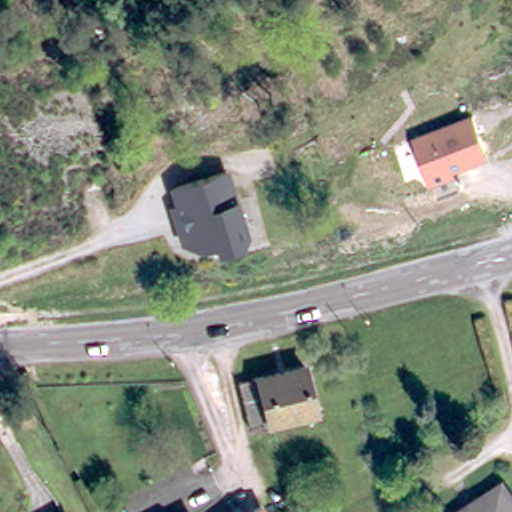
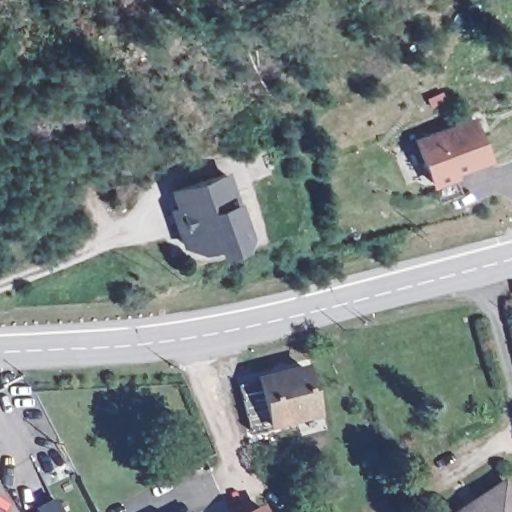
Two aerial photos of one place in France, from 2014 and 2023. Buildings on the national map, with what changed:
unchanged [(431,184),(413,136),(473,115),(489,158),(455,170),(457,175),(431,184)]
unchanged [(172,205),(167,188),(220,173),(237,233),(232,242),(210,248),(208,241),(190,246),(175,241),(170,225),(165,207),(172,205)]
unchanged [(255,430),(243,385),(310,369),(321,414),(255,430)]
unchanged [(502,484),(512,499),(512,512),(460,512),(502,484)]
unchanged [(252,512),(260,508),(262,512),(252,512)]

